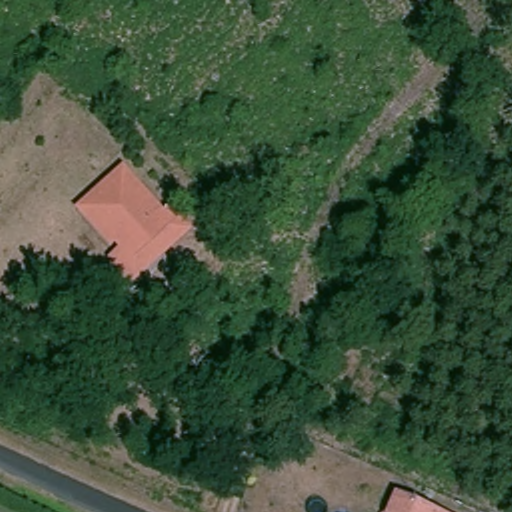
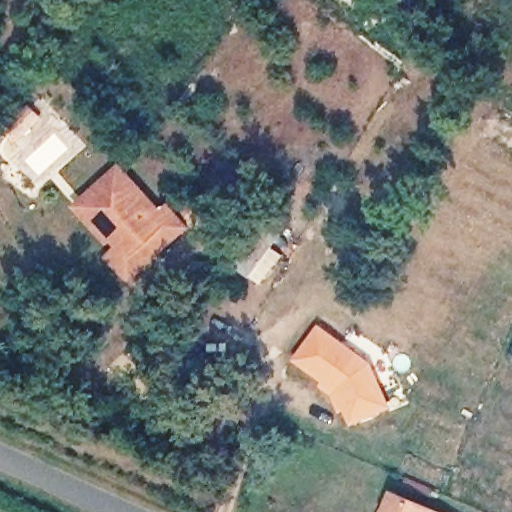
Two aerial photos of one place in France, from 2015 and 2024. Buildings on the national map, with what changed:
unchanged [(117,255),(127,244),(119,236),(116,239),(94,217),(82,206),(98,191),(108,181),(124,165),(131,172),(167,208),(174,201),(195,222),(166,250),(139,277),(117,255)]
new [(374,364),(393,410),(352,428),(346,413),(341,416),(332,397),(320,389),(323,384),(294,363),(322,326),(374,364)]
unchanged [(426,512),(396,512),(400,502),(426,512)]

